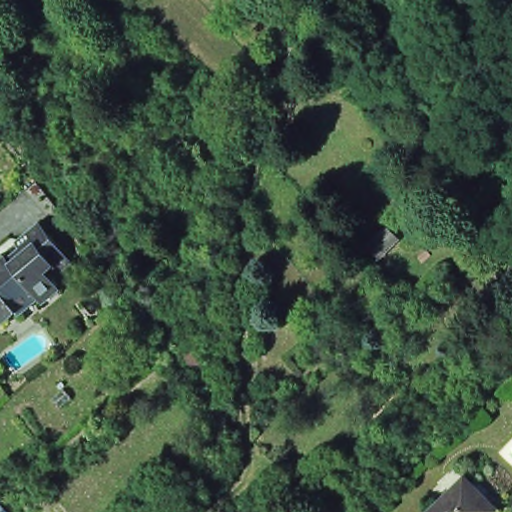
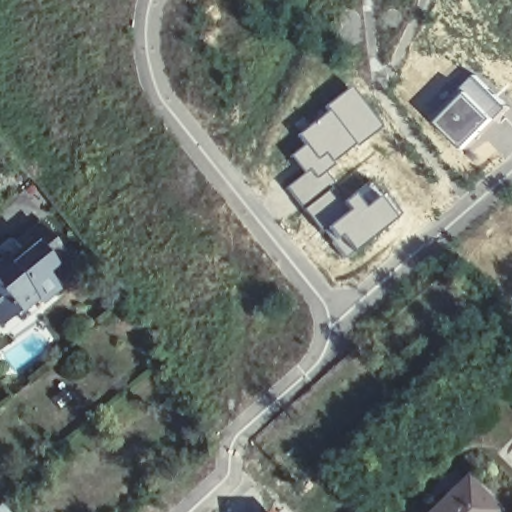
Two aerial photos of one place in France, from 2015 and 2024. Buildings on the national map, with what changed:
new [(348,85),(382,127),(356,149),(324,110),(321,107),(348,85)]
new [(402,215),(346,259),(322,230),(301,207),(285,186),(301,174),(288,156),(301,145),(294,135),(324,110),(356,149),(326,170),(334,181),(326,187),(334,198),(339,202),(369,180),(402,215)]
unchanged [(6,259),(2,255),(38,225),(70,262),(58,271),(53,265),(44,272),(49,278),(58,288),(43,302),(38,297),(16,315),(14,312),(3,322),(0,320),(0,264),(6,259)]
demolished [(108,267),(93,249),(88,242),(109,225),(115,232),(128,250),(108,267)]
demolished [(193,373),(179,353),(191,346),(203,366),(193,373)]
unchanged [(434,512),(459,487),(484,512),(434,512)]
new [(273,512),(265,512),(270,508),(273,512)]

